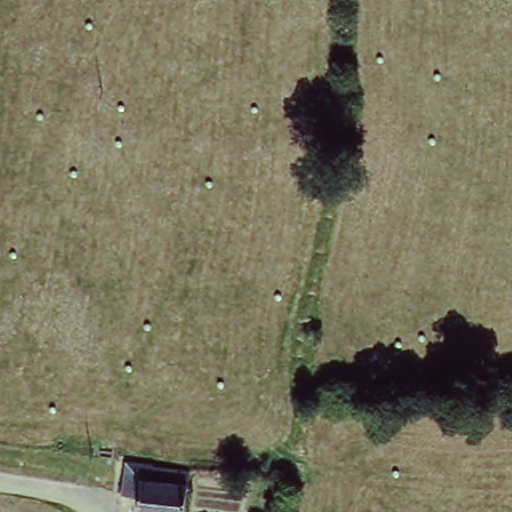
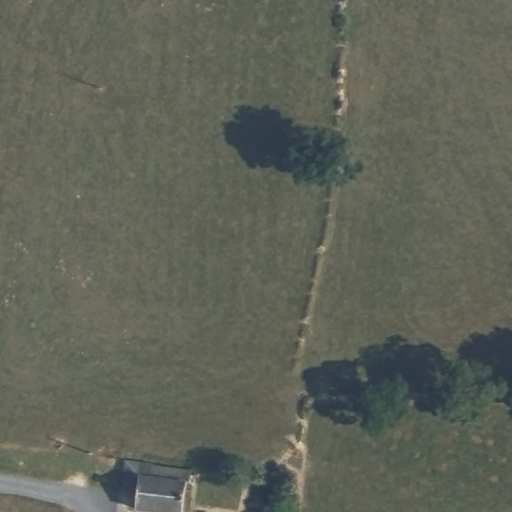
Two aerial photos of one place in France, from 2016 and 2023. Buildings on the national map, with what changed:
unchanged [(182,512),(134,512),(134,499),(119,497),(123,463),(185,471),(182,510),(182,512)]

